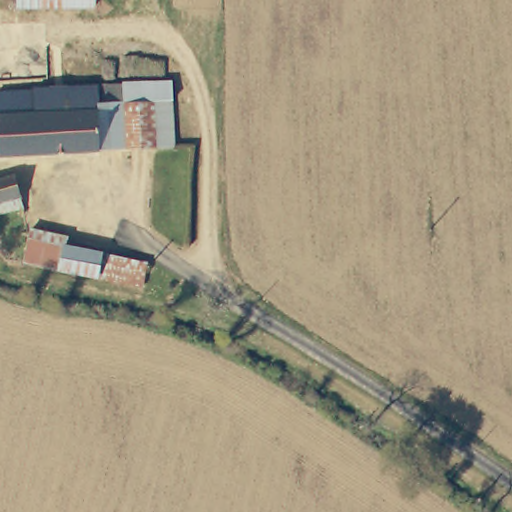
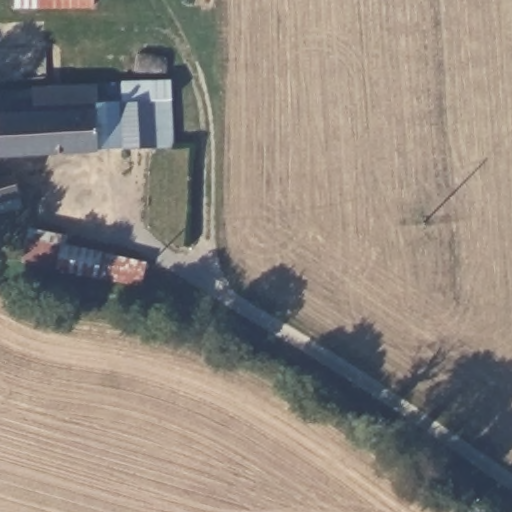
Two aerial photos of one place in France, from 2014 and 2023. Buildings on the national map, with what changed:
unchanged [(15,9),(15,0),(90,0),(90,5),(15,9)]
unchanged [(126,146),(119,83),(146,79),(170,76),(170,81),(173,143),(126,146)]
unchanged [(126,146),(55,153),(51,115),(35,116),(32,91),(119,83),(126,146)]
unchanged [(35,116),(51,115),(55,153),(0,158),(0,95),(32,91),(35,116)]
unchanged [(11,174),(17,208),(0,212),(0,177),(11,174)]
unchanged [(91,278),(37,267),(16,260),(22,238),(41,241),(93,250),(91,278)]
unchanged [(93,250),(137,259),(135,287),(91,278),(93,250)]

